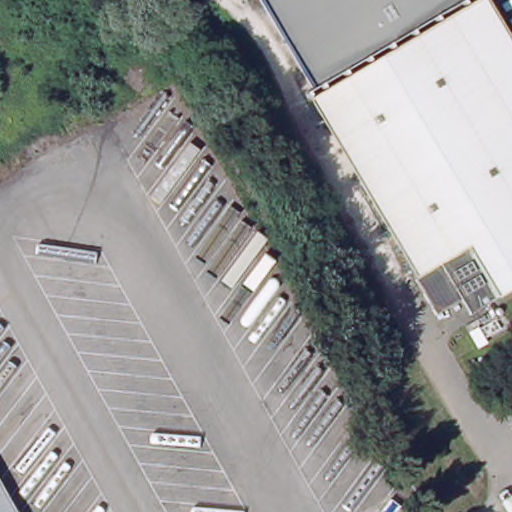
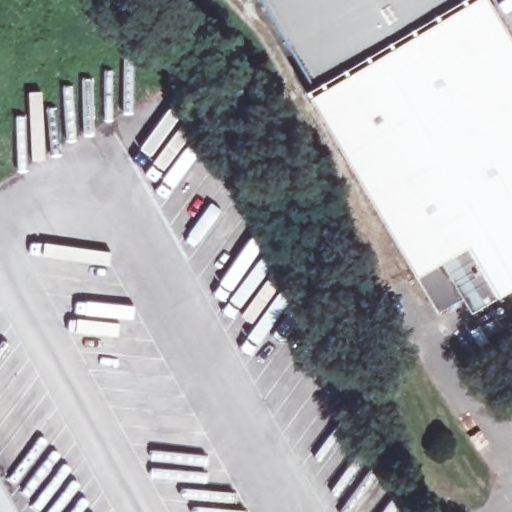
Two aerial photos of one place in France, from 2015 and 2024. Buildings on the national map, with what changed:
unchanged [(448,332),(416,279),(307,98),(253,0),(490,0),(512,38),(512,297),(448,332)]
unchanged [(0,471),(23,512),(0,512),(0,471)]

